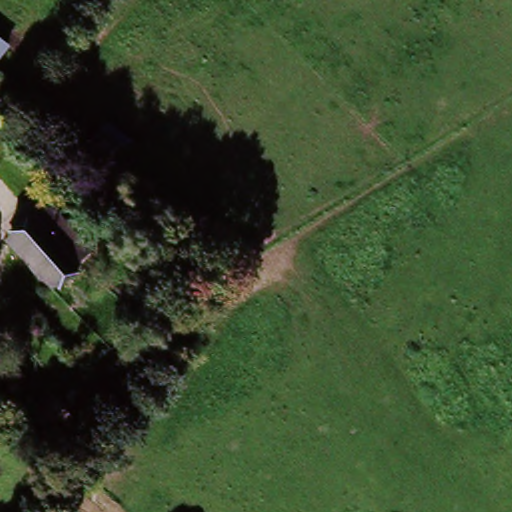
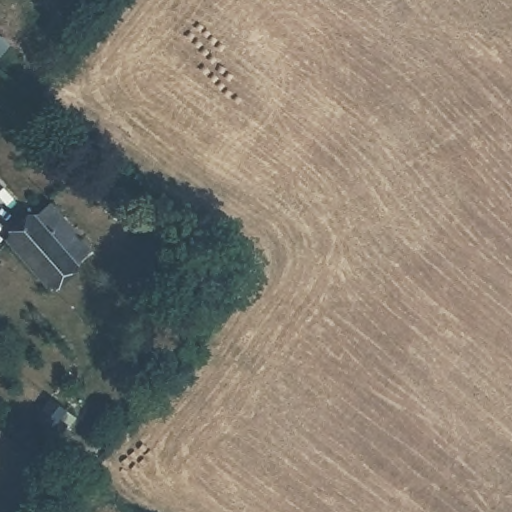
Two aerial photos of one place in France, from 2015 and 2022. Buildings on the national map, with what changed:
unchanged [(52,214),(93,257),(67,280),(27,237),(52,214)]
unchanged [(69,427),(45,452),(30,438),(53,412),(69,427)]

